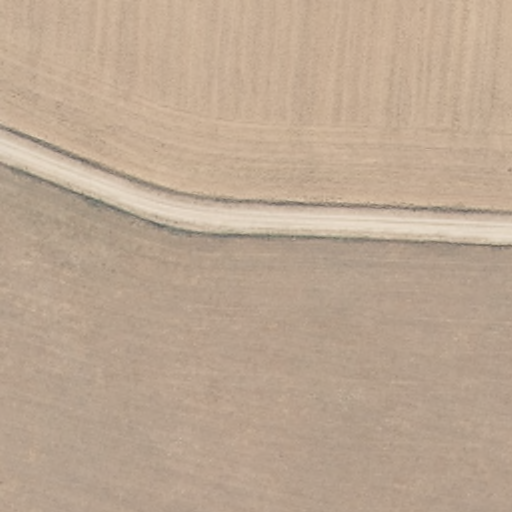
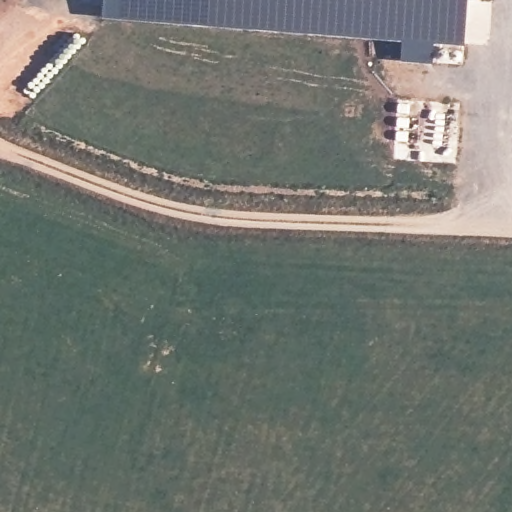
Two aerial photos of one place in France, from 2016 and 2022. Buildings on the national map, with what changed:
new [(462,45),(435,43),(432,62),(402,59),(403,41),(104,17),(105,0),(466,0),(462,45)]

